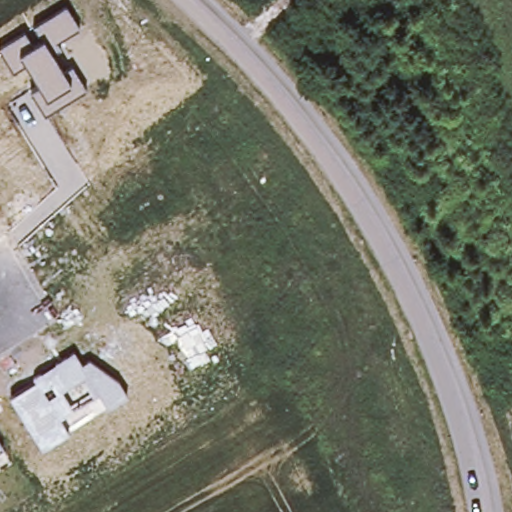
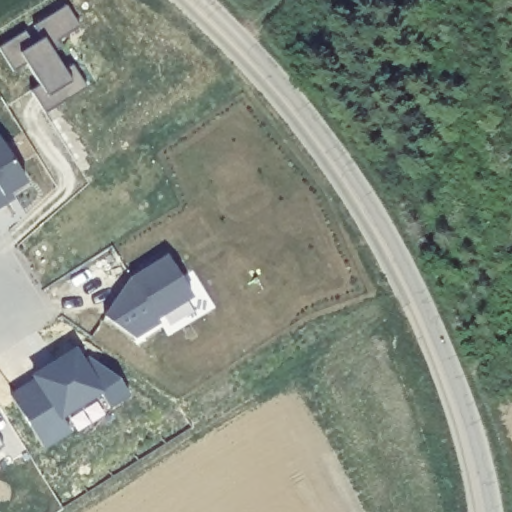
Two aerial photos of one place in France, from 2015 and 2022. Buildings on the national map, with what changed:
unchanged [(32,91),(39,84),(25,60),(12,69),(0,50),(0,47),(66,5),(79,26),(55,39),(61,48),(52,50),(63,69),(72,64),(85,87),(44,112),(32,91)]
new [(28,183),(7,196),(11,203),(0,210),(0,138),(28,183)]
new [(135,282),(171,260),(195,299),(162,325),(159,321),(136,341),(107,320),(125,296),(135,282)]
unchanged [(10,395),(35,380),(33,374),(74,350),(82,363),(88,358),(118,378),(127,393),(110,405),(100,390),(95,393),(84,374),(62,387),(75,407),(59,417),(68,431),(42,446),(10,395)]

